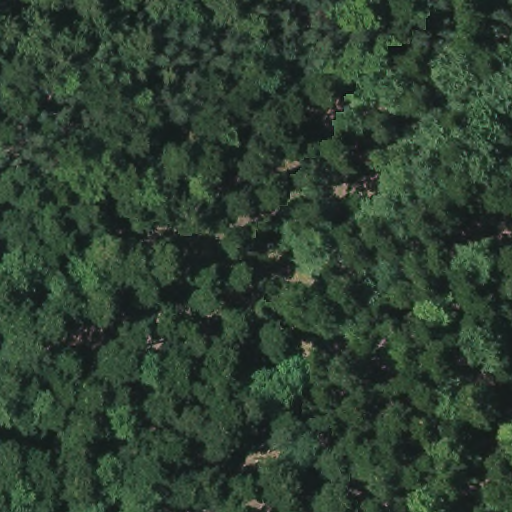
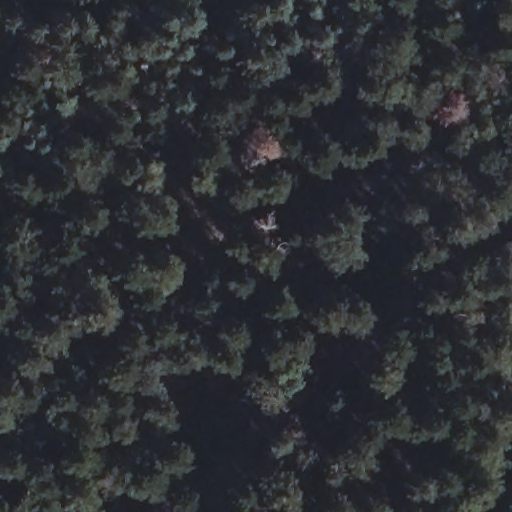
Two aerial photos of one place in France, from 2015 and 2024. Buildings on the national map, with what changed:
[]

